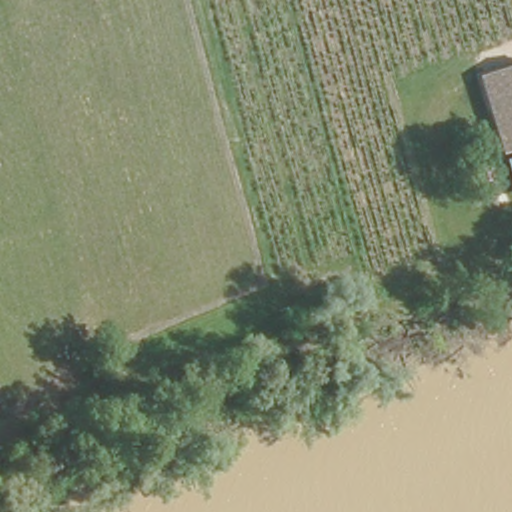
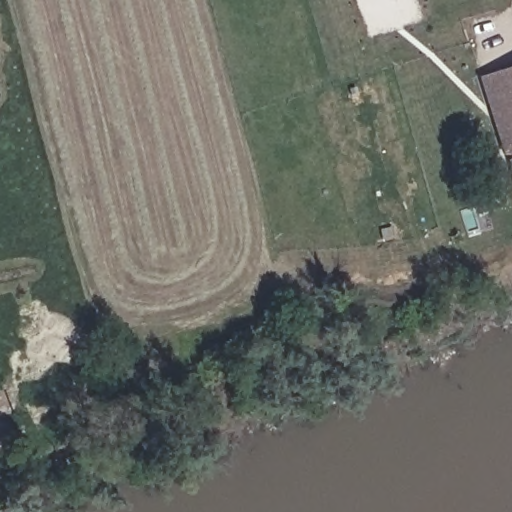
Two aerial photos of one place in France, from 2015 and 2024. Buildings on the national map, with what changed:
unchanged [(501,150),(476,75),(498,67),(512,62),(512,147),(501,150)]

